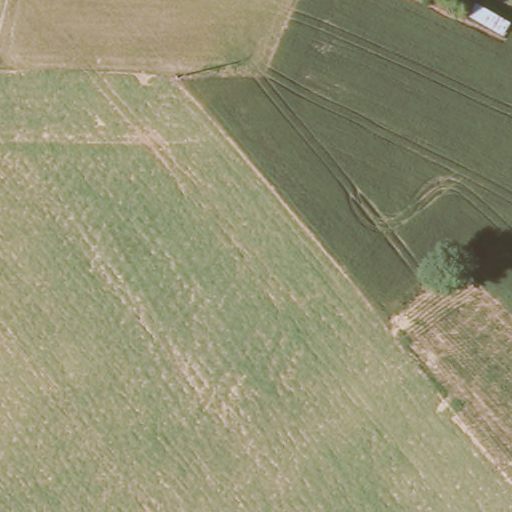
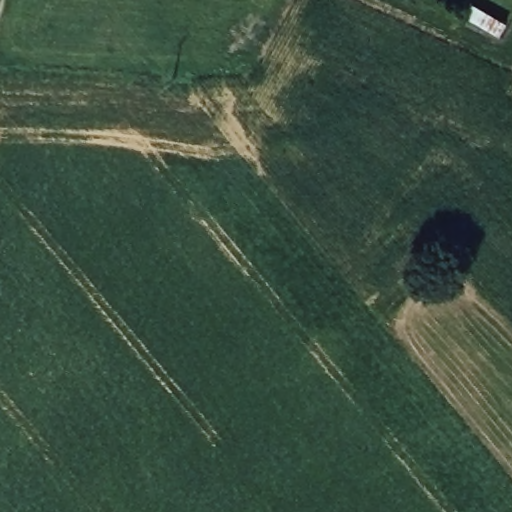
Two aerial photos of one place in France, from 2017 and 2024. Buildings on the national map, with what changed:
unchanged [(473,2),(505,19),(499,31),(467,14),(473,2)]

